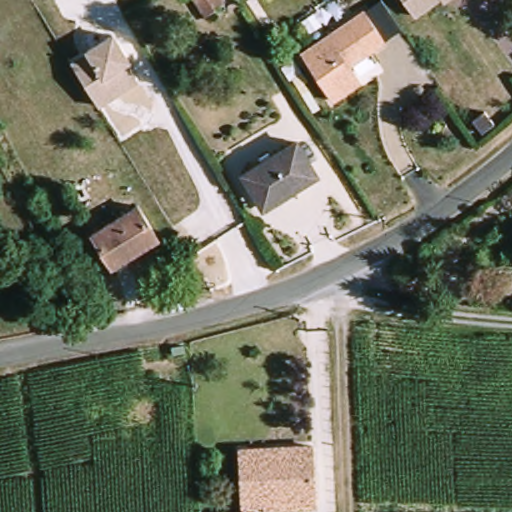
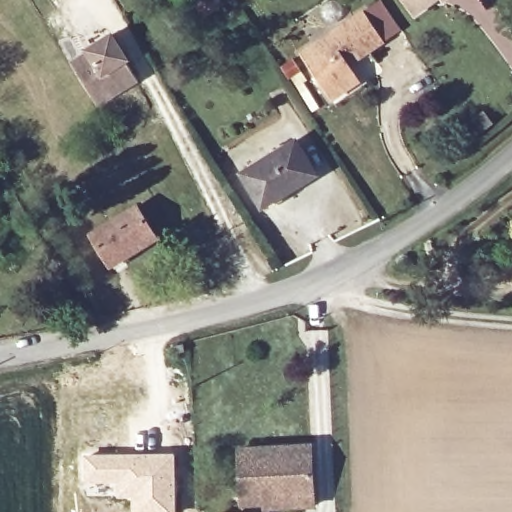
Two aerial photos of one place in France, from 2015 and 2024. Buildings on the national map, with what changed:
unchanged [(226,7),(205,19),(193,0),(221,0),(226,7)]
unchanged [(410,16),(397,0),(434,0),(410,16)]
unchanged [(436,0),(443,0),(438,3),(436,0)]
unchanged [(365,83),(337,102),(306,55),(370,13),(386,2),(406,32),(390,43),(355,67),(365,83)]
unchanged [(90,91),(72,64),(89,54),(89,51),(114,35),(129,61),(128,63),(139,82),(116,96),(99,107),(90,91)]
unchanged [(468,111),(480,102),(488,114),(477,123),(468,111)]
unchanged [(286,192),(282,186),(260,199),(245,178),(297,145),(316,175),(286,192)]
unchanged [(156,235),(114,261),(95,233),(136,205),(156,235)]
unchanged [(266,503),(248,502),(244,448),(316,443),(318,497),(318,506),(267,508),(266,503)]
new [(176,512),(130,512),(130,498),(81,496),(79,453),(175,452),(176,512)]

